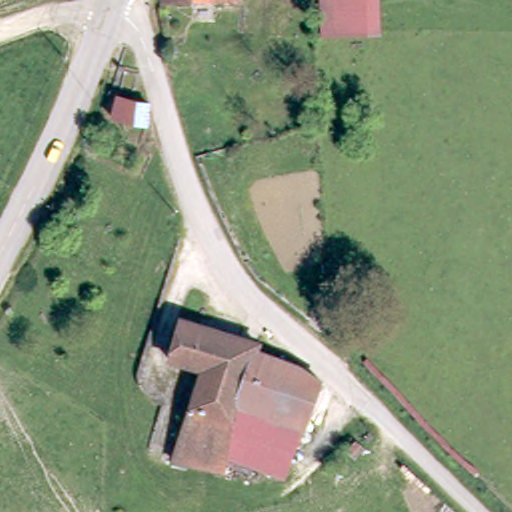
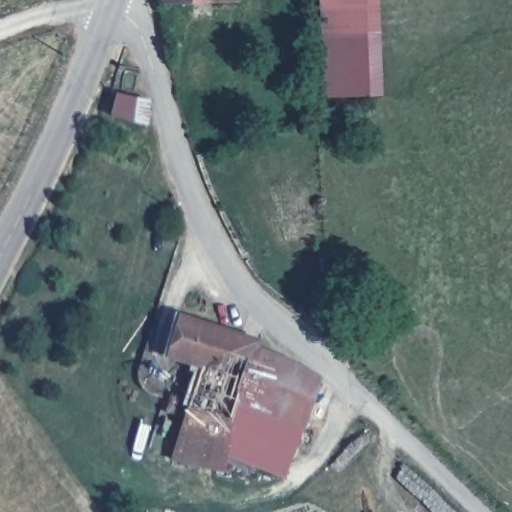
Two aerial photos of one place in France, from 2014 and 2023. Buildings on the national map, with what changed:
new [(322,95),(318,0),(331,0),(332,30),(372,27),(371,0),(381,0),(385,92),(322,95)]
unchanged [(332,30),(331,0),(371,0),(372,27),(332,30)]
unchanged [(113,89),(145,101),(140,122),(107,110),(113,89)]
unchanged [(254,347),(230,416),(222,460),(221,466),(169,454),(198,366),(167,356),(180,314),(257,340),(254,347)]
unchanged [(235,425),(222,460),(230,416),(254,347),(299,363),(320,376),(297,445),(235,425)]
unchanged [(286,475),(252,463),(248,468),(222,460),(235,425),(297,445),(286,475)]

